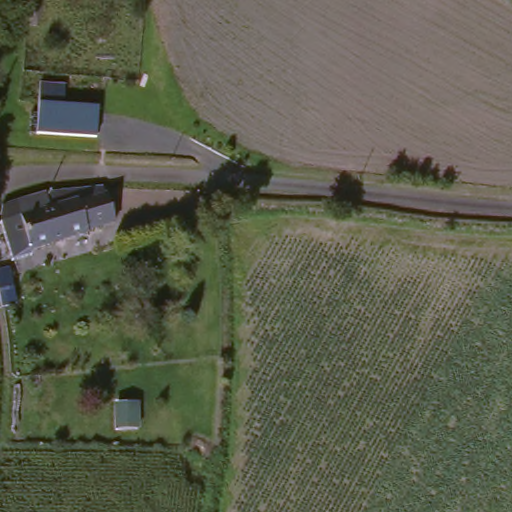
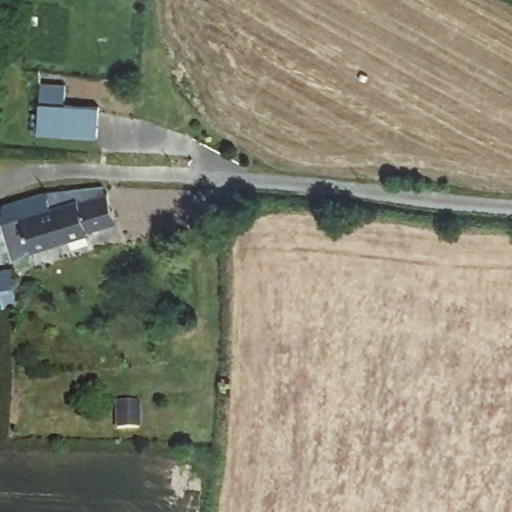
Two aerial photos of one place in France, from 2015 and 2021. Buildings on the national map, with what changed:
unchanged [(43,83),(67,85),(67,103),(99,106),(99,134),(41,133),(43,83)]
unchanged [(0,219),(0,209),(4,195),(13,193),(46,185),(102,178),(104,185),(106,185),(113,215),(85,222),(86,225),(31,239),(33,244),(9,251),(0,219)]
unchanged [(11,272),(0,275),(0,253),(6,252),(11,272)]
unchanged [(151,412),(149,433),(129,433),(129,412),(151,412)]

